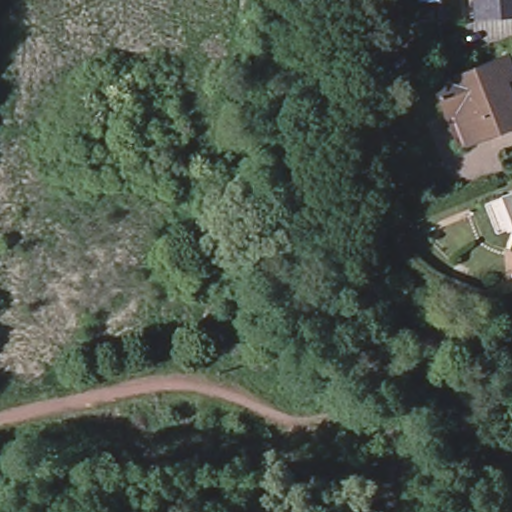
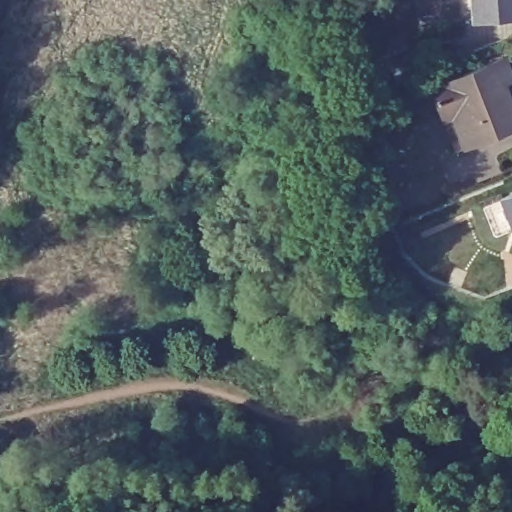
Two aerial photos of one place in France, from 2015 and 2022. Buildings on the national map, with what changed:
unchanged [(512,14),(475,16),(474,0),(512,0),(512,14)]
unchanged [(436,77),(510,49),(512,54),(512,120),(472,136),(461,140),(449,109),(436,77)]
unchanged [(512,216),(503,194),(512,190),(512,216)]

